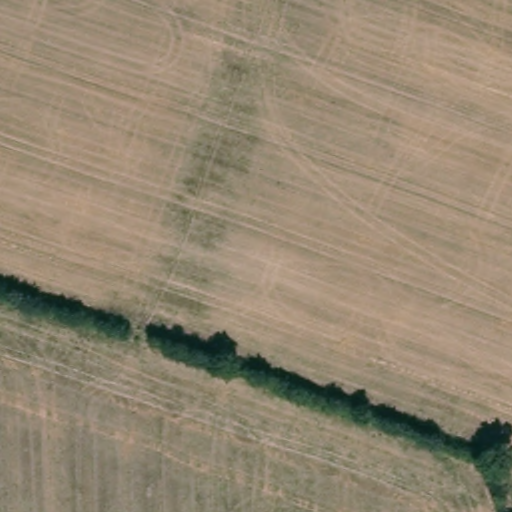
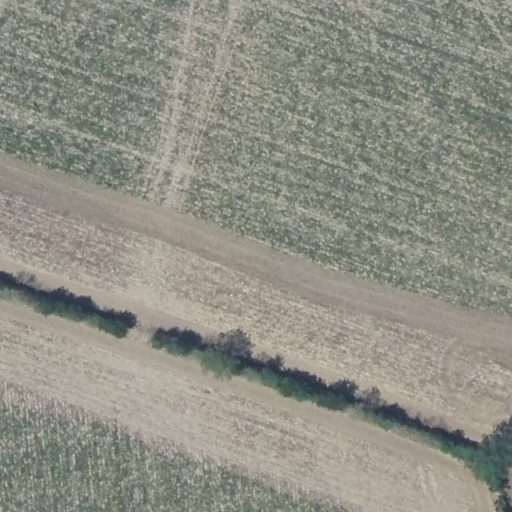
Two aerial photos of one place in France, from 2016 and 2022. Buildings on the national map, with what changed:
[]

